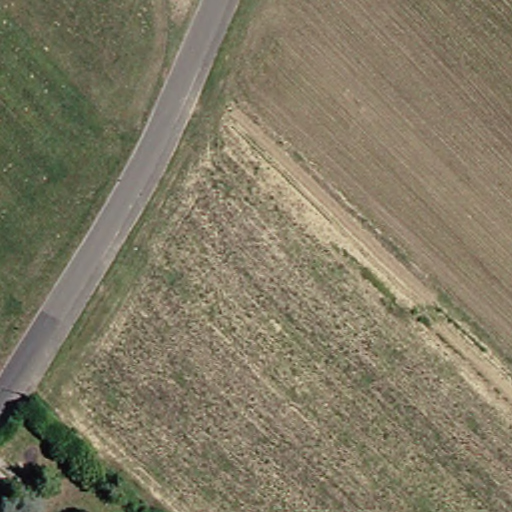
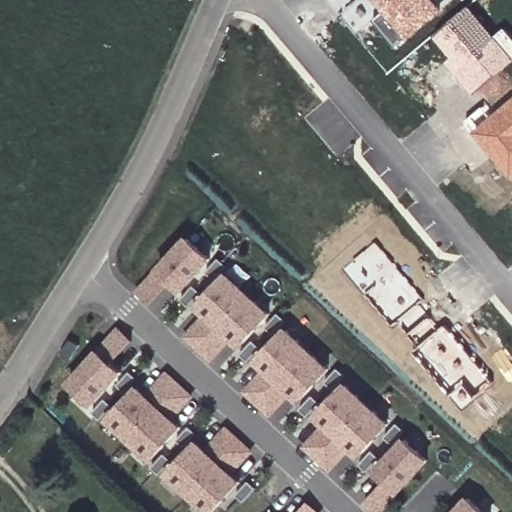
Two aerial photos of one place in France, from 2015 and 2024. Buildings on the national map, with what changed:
new [(375,0),(436,0),(444,9),(399,46),(375,19),(384,11),(375,0)]
new [(449,61),(453,57),(436,37),(473,5),(497,35),(507,27),(512,33),(512,63),(477,94),(449,61)]
new [(473,132),(512,100),(512,177),(473,132)]
new [(135,291),(156,269),(188,235),(214,258),(183,292),(170,282),(151,305),(135,291)]
new [(394,324),(348,268),(380,242),(428,298),(423,302),(433,315),(431,317),(412,333),(399,320),(394,324)]
new [(183,335),(204,315),(194,305),(227,270),(274,313),(240,348),(232,340),(212,362),(183,335)]
new [(466,385),(452,395),(414,351),(421,346),(411,334),(412,333),(431,317),(441,330),(447,325),(496,382),(476,397),(466,385)]
new [(114,362),(124,371),(93,406),(66,383),(97,348),(119,326),(134,339),(114,362)]
new [(243,390),(265,370),(254,360),(287,326),(333,367),(300,403),(291,395),(271,416),(243,390)]
new [(195,396),(175,418),(185,427),(152,461),(106,420),(139,385),(146,392),(168,370),(195,396)]
new [(303,444),(324,425),(314,415),(347,381),(393,422),(360,458),(351,451),(331,472),(303,444)]
new [(255,450),(234,472),(244,480),(216,512),(208,512),(165,474),(198,439),(206,446),(228,425),(255,450)]
new [(363,504),(385,480),(374,470),(405,436),(432,460),(401,492),(382,512),(373,512),(363,504)]
new [(468,495),(487,512),(452,512),(468,495)]
new [(321,512),(299,512),(309,501),(321,512)]

